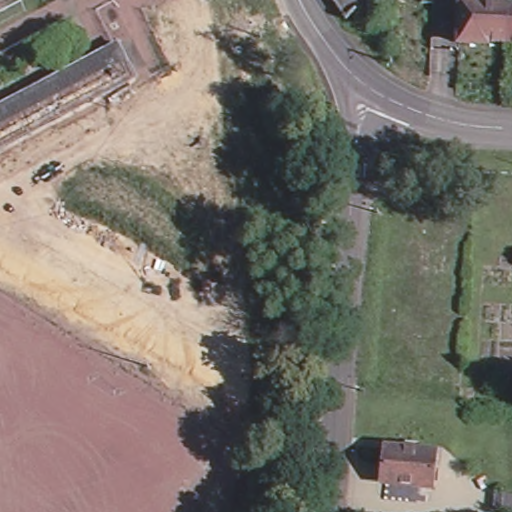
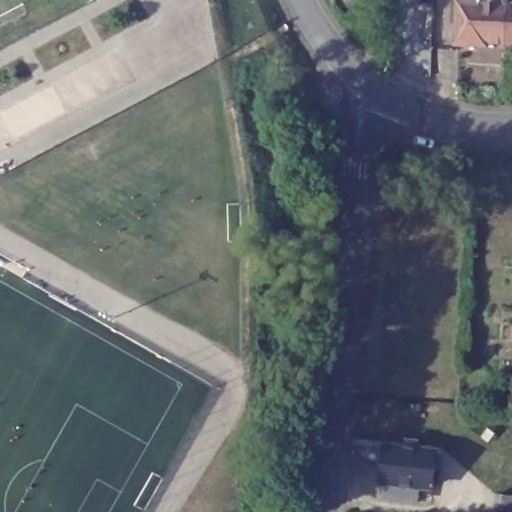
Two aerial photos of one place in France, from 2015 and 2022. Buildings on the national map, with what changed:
unchanged [(490,50),(465,49),(467,6),(487,7),(488,0),(512,0),(512,49),(490,48),(490,50)]
unchanged [(138,83),(0,154),(0,112),(122,50),(138,83)]
unchanged [(438,454),(435,486),(385,479),(388,448),(438,454)]
unchanged [(495,498),(512,500),(512,512),(493,512),(495,498)]

